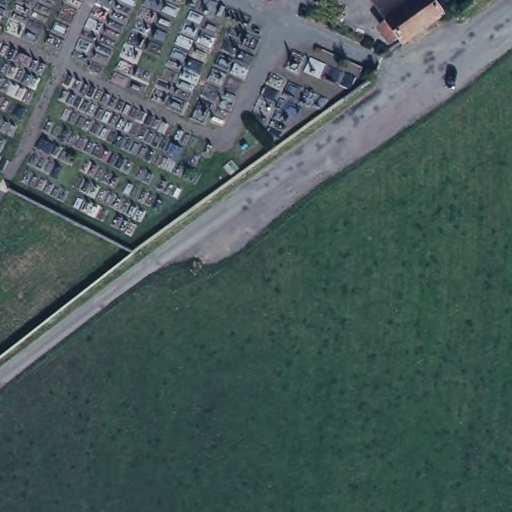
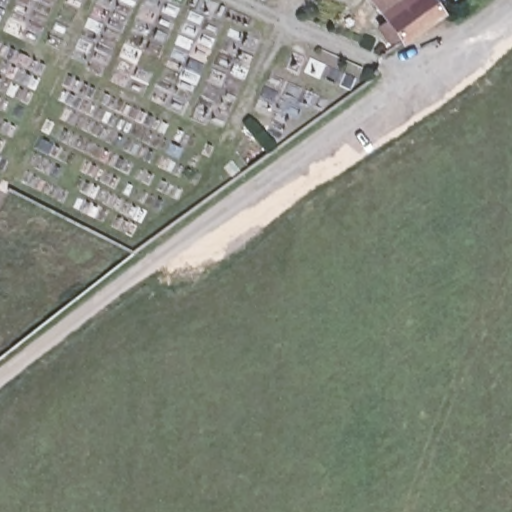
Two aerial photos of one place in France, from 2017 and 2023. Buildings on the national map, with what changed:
unchanged [(447,15),(407,44),(379,10),(384,8),(379,0),(434,0),(447,15)]

